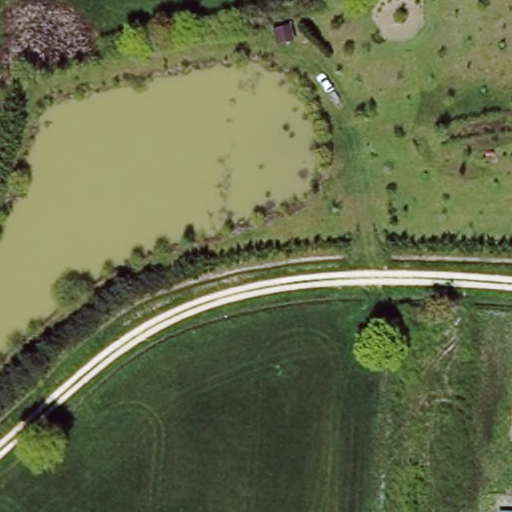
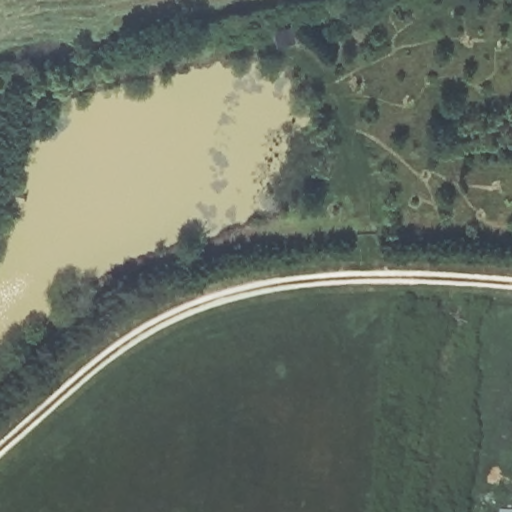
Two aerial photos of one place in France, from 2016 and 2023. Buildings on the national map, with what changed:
unchanged [(294,41),(278,45),(275,32),(290,28),(294,41)]

